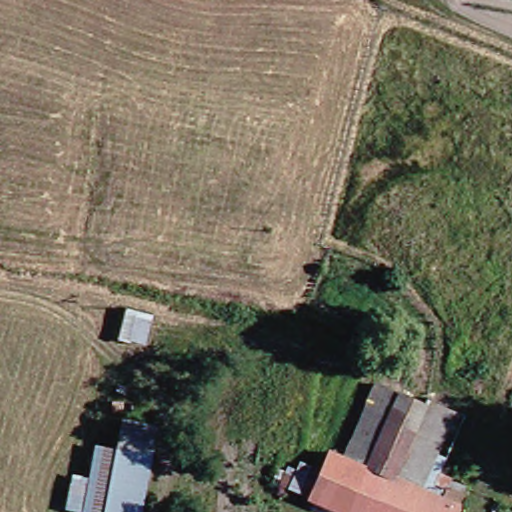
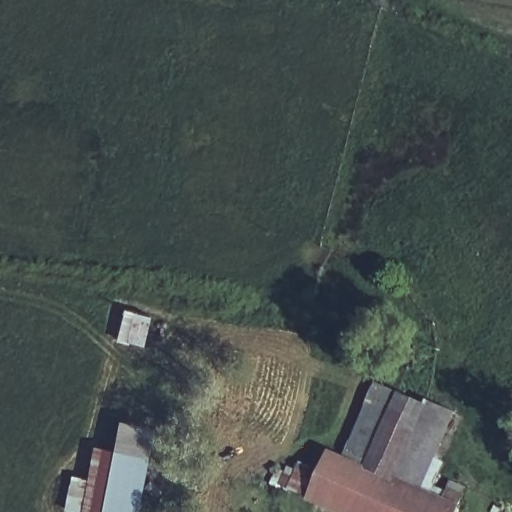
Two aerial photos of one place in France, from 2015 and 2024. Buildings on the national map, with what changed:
unchanged [(132,317),(131,322),(151,328),(141,350),(112,342),(119,314),(132,317)]
unchanged [(312,507),(293,500),(290,498),(297,478),(320,487),(331,459),(340,462),(372,388),(427,411),(400,475),(425,486),(435,490),(441,476),(465,486),(460,500),(454,512),(323,512),(312,507)]
unchanged [(452,422),(425,486),(400,475),(427,411),(452,422)]
unchanged [(94,449),(117,456),(127,426),(154,434),(130,512),(79,512),(62,506),(72,476),(85,479),(94,449)]

